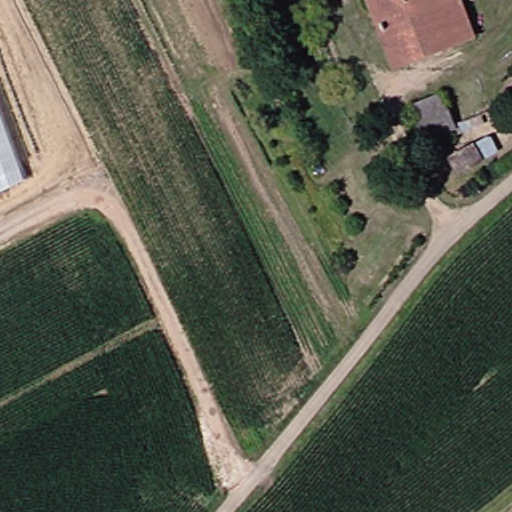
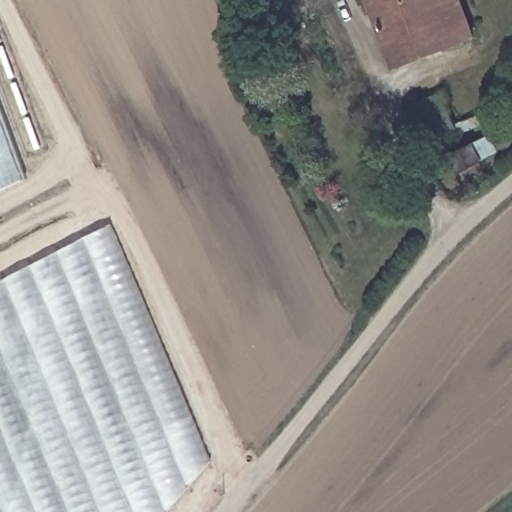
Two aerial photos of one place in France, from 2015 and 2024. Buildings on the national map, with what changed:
unchanged [(395,69),(370,0),(486,0),(497,32),(395,69)]
new [(0,96),(30,176),(0,191),(0,96)]
unchanged [(493,101),(503,133),(433,158),(421,124),(493,101)]
unchanged [(493,160),(500,176),(465,192),(458,176),(493,160)]
new [(215,460),(170,512),(0,512),(0,280),(113,222),(215,460)]

